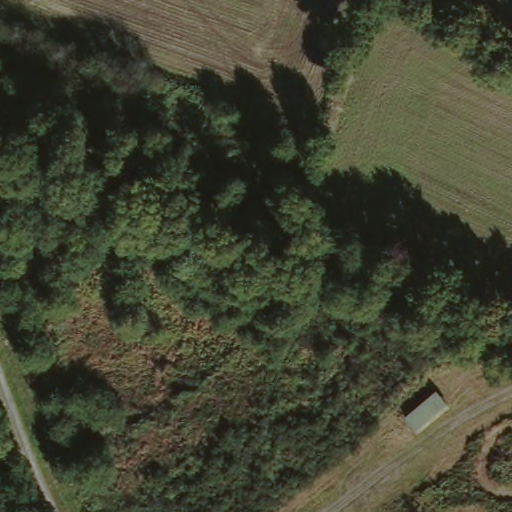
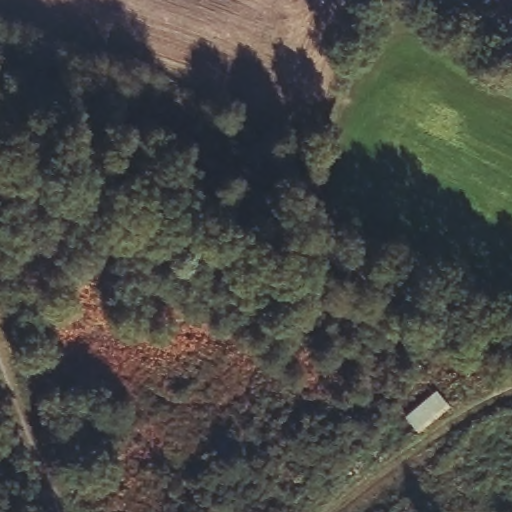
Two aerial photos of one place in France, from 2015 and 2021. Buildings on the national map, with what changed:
unchanged [(403,419),(436,392),(451,409),(416,436),(403,419)]

